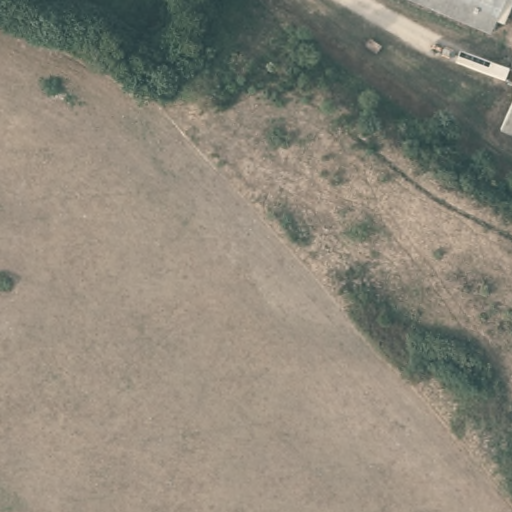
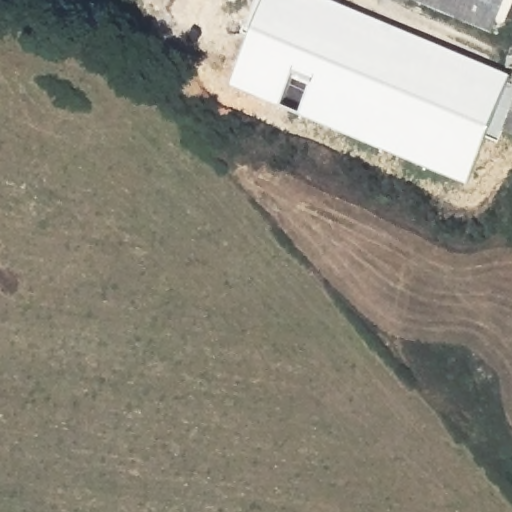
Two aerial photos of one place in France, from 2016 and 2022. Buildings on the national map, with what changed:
new [(465,184),(223,80),(258,0),(326,0),(509,78),(465,184)]
unchanged [(491,28),(426,0),(503,0),(491,28)]
unchanged [(492,129),(512,86),(512,137),(492,129)]

